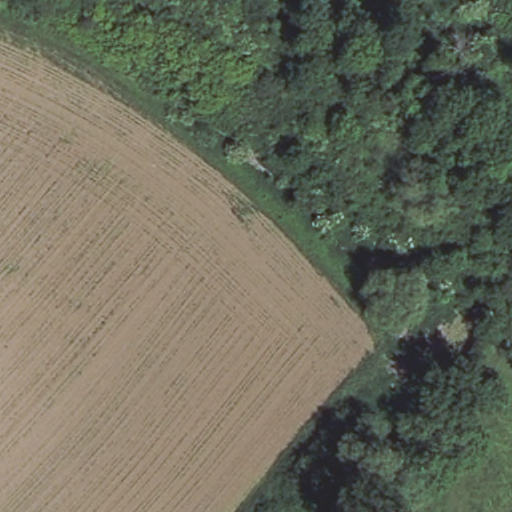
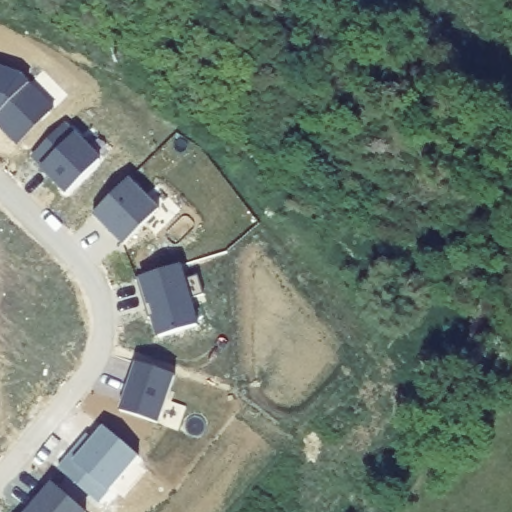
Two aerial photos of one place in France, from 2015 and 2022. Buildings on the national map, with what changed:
new [(21,76),(55,110),(19,145),(2,129),(6,125),(0,119),(0,69),(21,76)]
new [(65,124),(101,161),(68,194),(55,180),(55,179),(32,156),(65,124)]
new [(130,179),(160,210),(124,246),(93,215),(130,179)]
new [(145,306),(137,279),(180,266),(185,280),(199,275),(205,295),(190,300),(198,326),(160,338),(154,317),(149,319),(145,306)]
new [(179,431),(160,424),(121,412),(137,363),(176,376),(167,401),(187,407),(179,431)]
new [(88,435),(94,440),(105,427),(140,457),(136,462),(148,472),(125,498),(113,489),(100,504),(60,469),(88,435)]
new [(38,496),(42,499),(54,484),(86,512),(23,512),(25,510),(38,496)]

